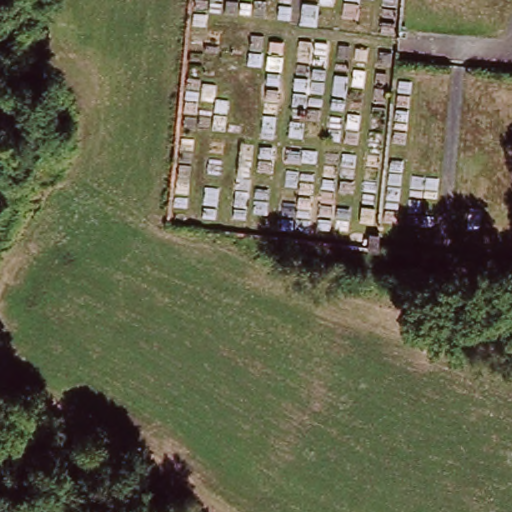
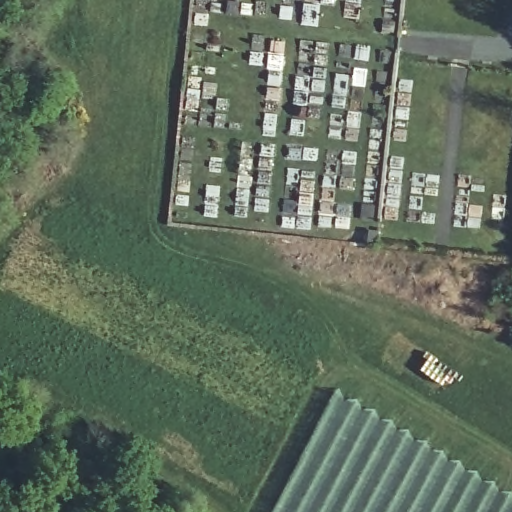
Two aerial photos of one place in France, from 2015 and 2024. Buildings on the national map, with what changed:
unchanged [(360,244),(361,230),(381,231),(379,245),(360,244)]

